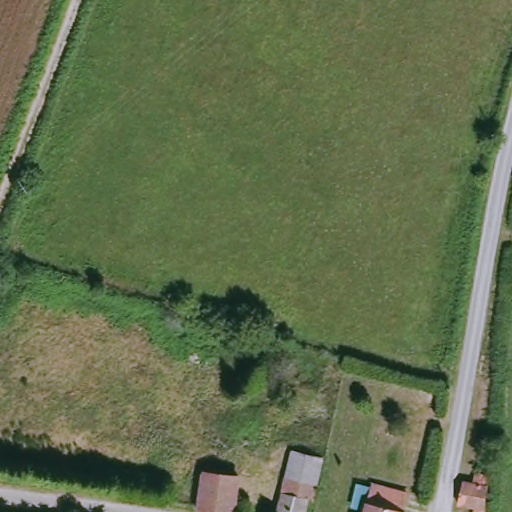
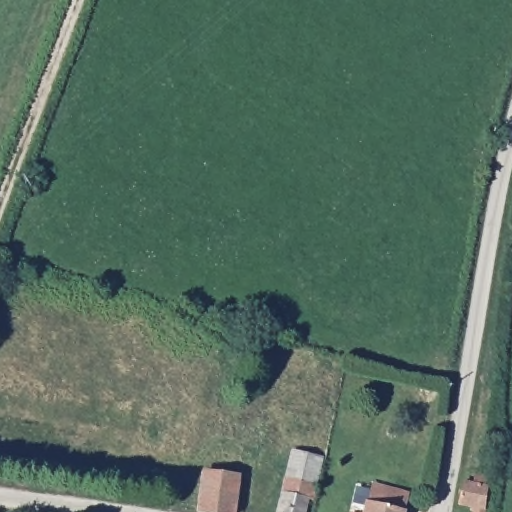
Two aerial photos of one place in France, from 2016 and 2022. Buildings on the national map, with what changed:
unchanged [(315,499),(309,497),(305,512),(279,512),(297,449),(326,456),(315,499)]
unchanged [(238,512),(203,512),(211,473),(245,482),(238,512)]
unchanged [(406,512),(351,512),(352,509),(367,512),(374,485),(410,495),(406,512)]
unchanged [(476,512),(452,512),(456,498),(469,500),(472,488),(482,490),(476,512)]

